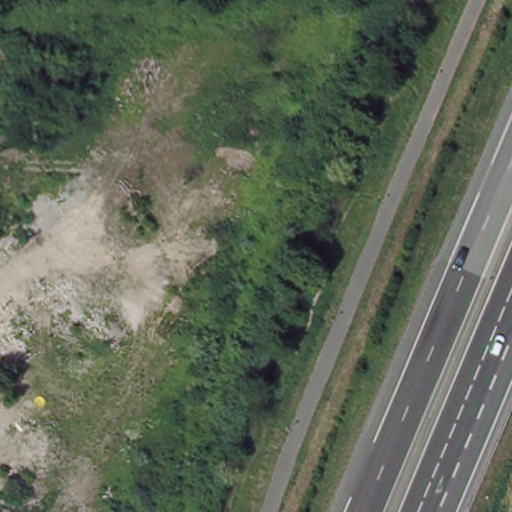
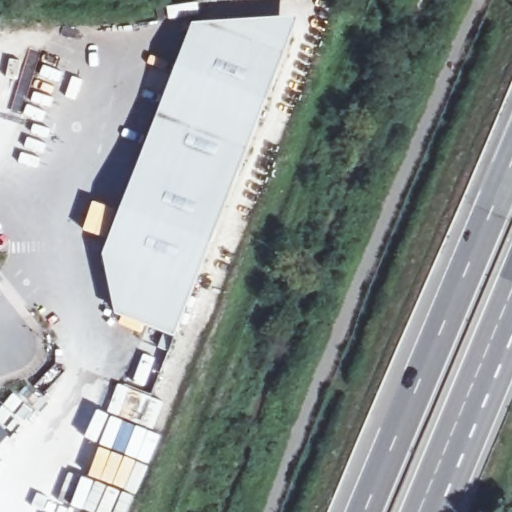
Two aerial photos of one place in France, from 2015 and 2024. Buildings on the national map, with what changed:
new [(299,18),(175,338),(115,314),(102,255),(193,23),(299,18)]

